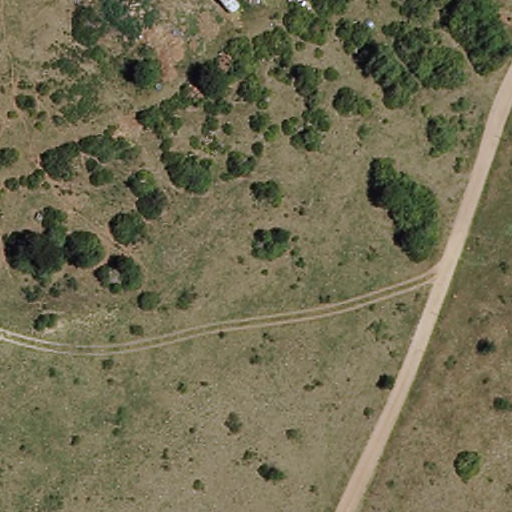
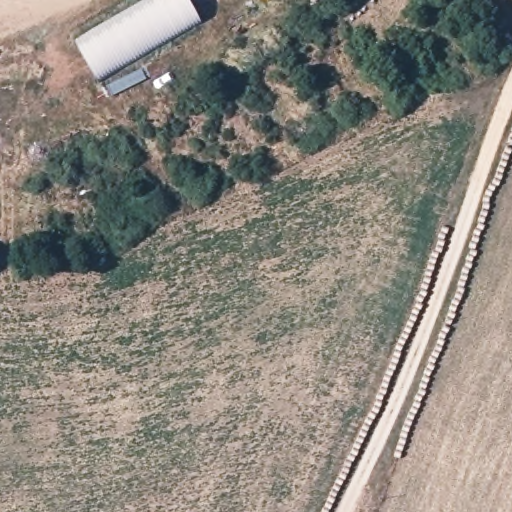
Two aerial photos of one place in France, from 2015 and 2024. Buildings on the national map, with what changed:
new [(206,21),(102,81),(79,38),(145,0),(194,0),(206,21)]

